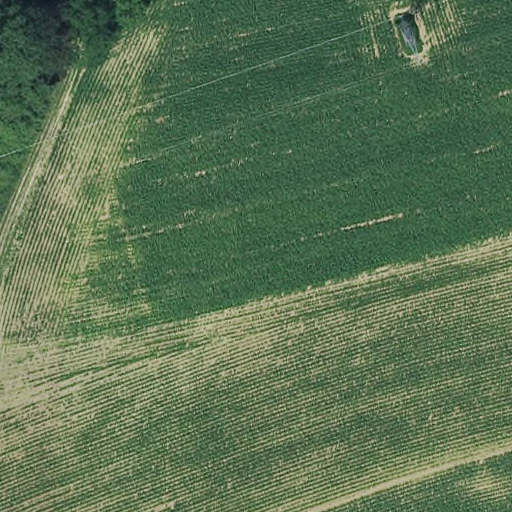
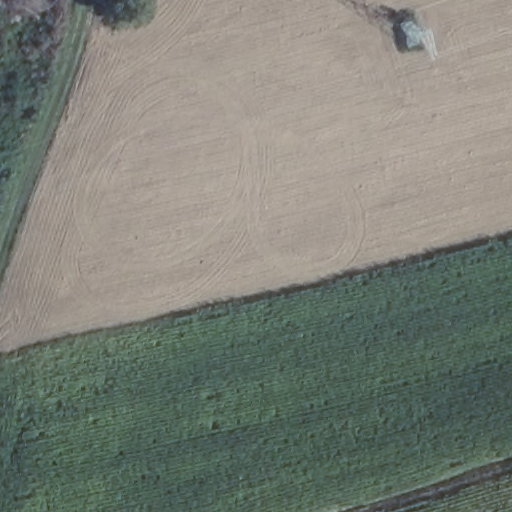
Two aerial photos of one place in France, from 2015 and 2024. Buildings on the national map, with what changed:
[]

